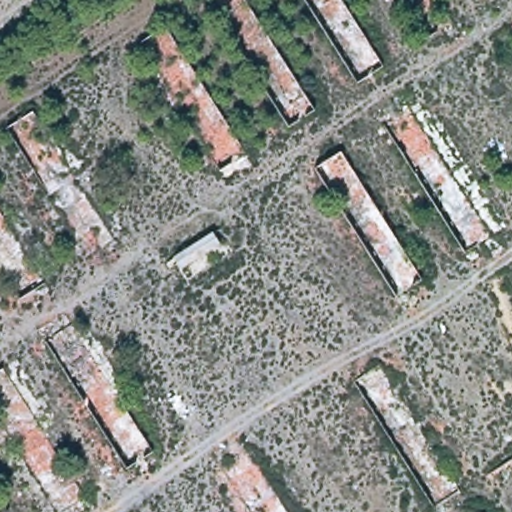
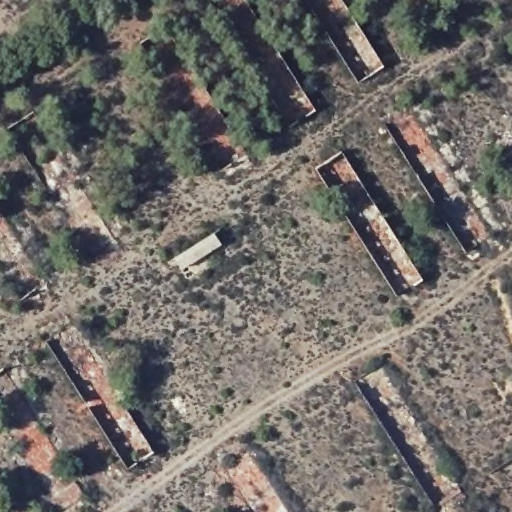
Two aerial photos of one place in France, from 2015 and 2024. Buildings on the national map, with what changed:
unchanged [(172,251),(216,227),(224,244),(185,268),(172,251)]
unchanged [(486,506),(489,512),(477,512),(486,506)]

